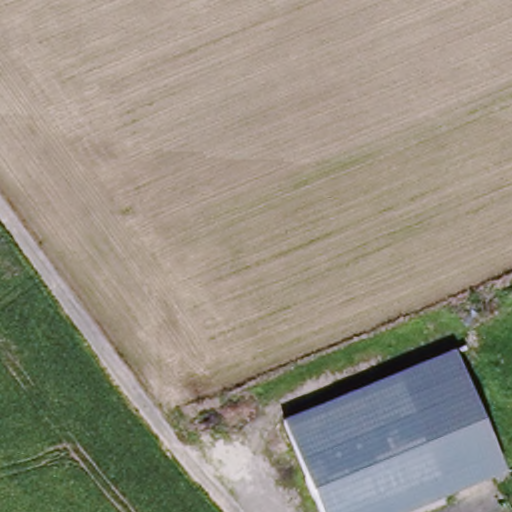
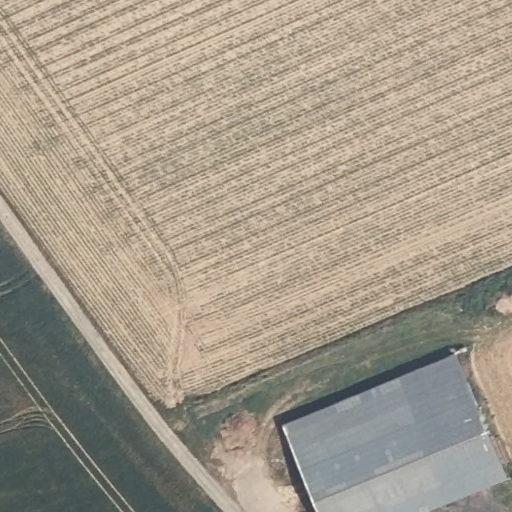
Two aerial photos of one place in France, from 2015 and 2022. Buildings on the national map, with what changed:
unchanged [(452,355),(501,478),(449,500),(399,374),(452,355)]
unchanged [(322,512),(286,418),(399,374),(449,500),(420,512),(322,512)]

